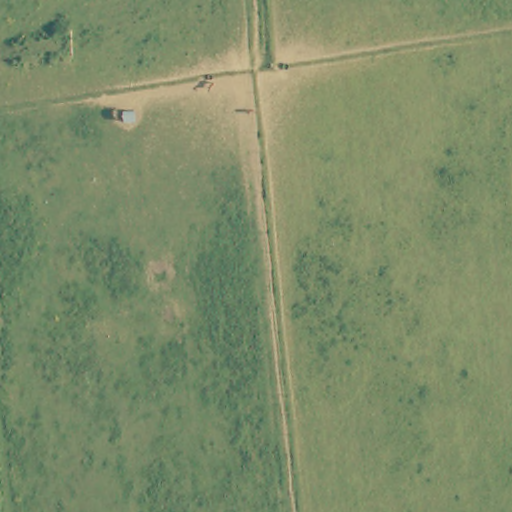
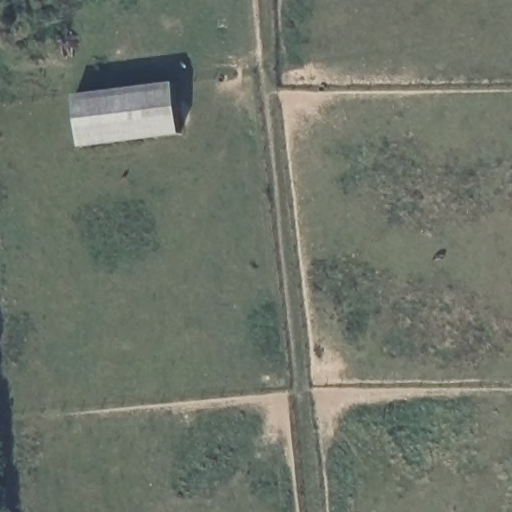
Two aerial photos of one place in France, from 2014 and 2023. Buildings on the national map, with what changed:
new [(180,135),(80,150),(74,95),(174,83),(180,135)]

